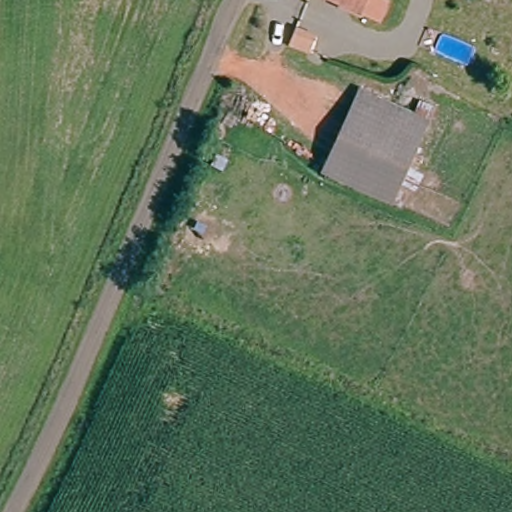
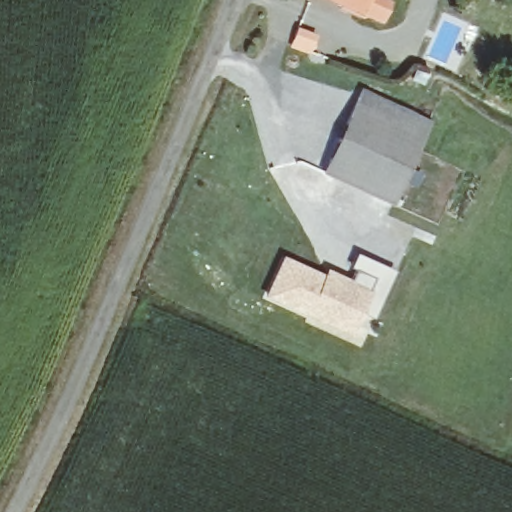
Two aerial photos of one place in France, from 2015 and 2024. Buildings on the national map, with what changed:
unchanged [(364,12),(338,0),(370,0),(364,12)]
unchanged [(302,31),(320,38),(314,53),(295,46),(302,31)]
unchanged [(343,131),(366,82),(439,118),(414,168),(343,131)]
unchanged [(396,202),(326,165),(343,131),(414,168),(396,202)]
new [(324,276),(327,269),(352,281),(356,271),(350,268),(356,255),(395,273),(373,320),(363,316),(353,337),(264,298),(283,257),(324,276)]

